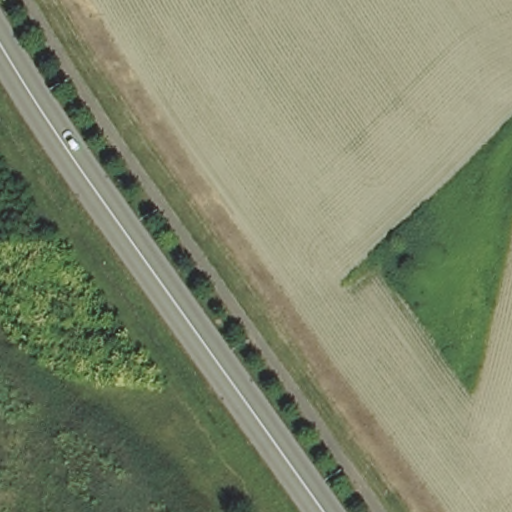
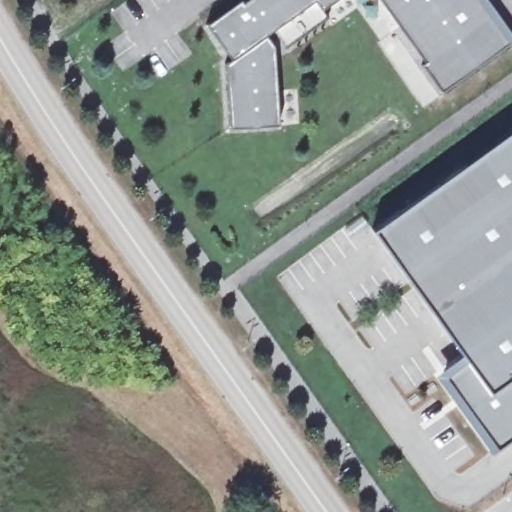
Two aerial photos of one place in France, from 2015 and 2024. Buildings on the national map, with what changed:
new [(322,10),(327,17),(285,47),(273,30),(263,36),(272,47),(277,126),(230,129),(225,62),(230,59),(206,23),(238,0),(239,0),(242,5),(249,0),(335,0),(322,10)]
new [(512,34),(512,43),(442,93),(423,65),(425,62),(382,0),(487,0),(512,34)]
new [(512,441),(494,454),(437,376),(463,359),(372,229),(512,132),(512,441)]

